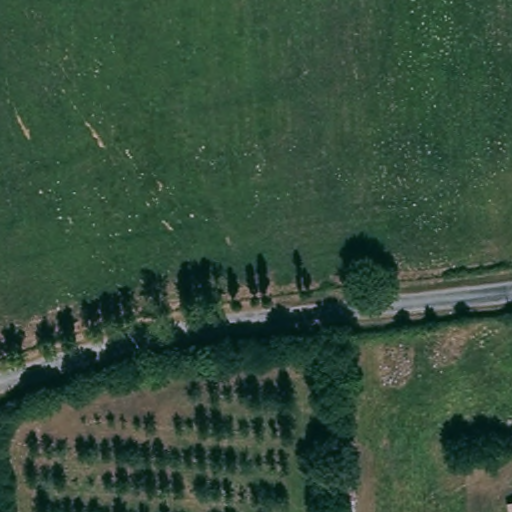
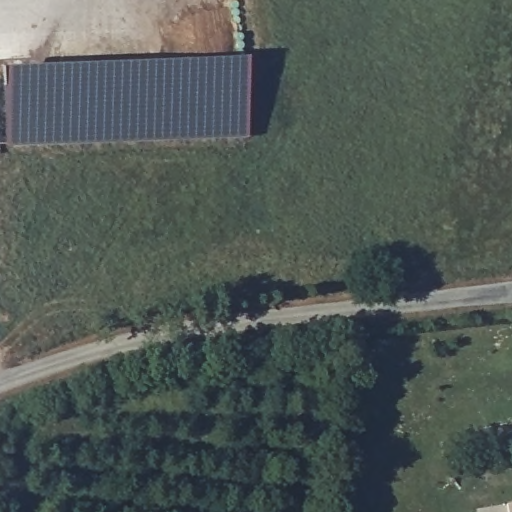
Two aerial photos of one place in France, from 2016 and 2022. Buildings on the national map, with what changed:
new [(2,66),(245,56),(247,136),(6,146),(2,66)]
unchanged [(339,495),(362,495),(362,512),(338,512),(339,495)]
unchanged [(510,502),(512,501),(512,512),(510,502)]

